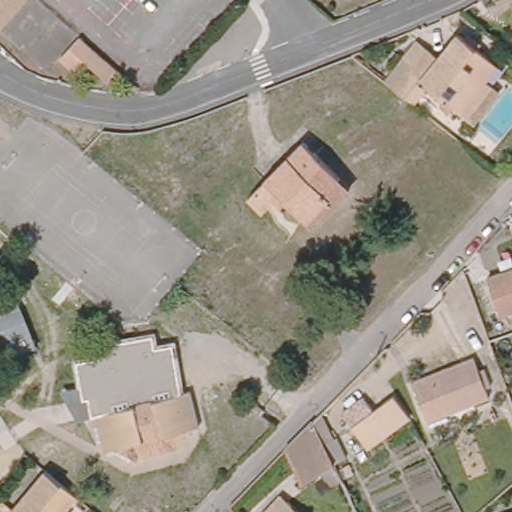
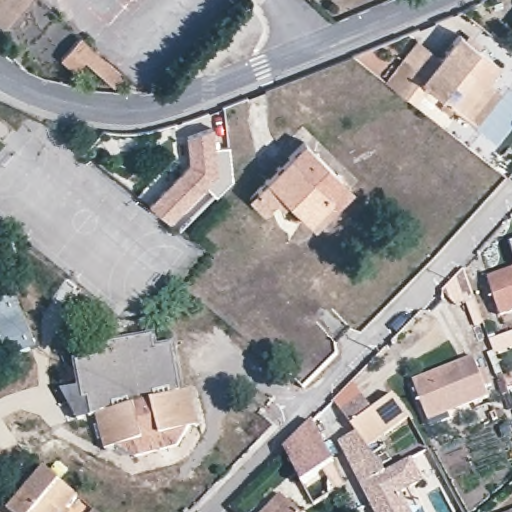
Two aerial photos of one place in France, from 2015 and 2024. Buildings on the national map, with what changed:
unchanged [(22,0),(0,27),(0,0),(22,0)]
unchanged [(107,66),(89,87),(57,60),(76,38),(107,66)]
unchanged [(461,119),(450,107),(421,81),(407,97),(384,77),(404,54),(414,63),(426,49),(436,58),(453,41),(485,68),(476,80),(486,91),(461,119)]
new [(187,162),(184,132),(209,130),(211,146),(228,144),(231,178),(215,194),(204,182),(166,220),(145,202),(187,162)]
unchanged [(315,227),(307,220),(279,191),(263,207),(249,194),(302,138),(342,175),(354,185),(315,227)]
unchanged [(483,271),(512,264),(512,302),(493,307),(483,271)]
unchanged [(14,301),(35,351),(8,363),(0,346),(0,307),(14,301)]
unchanged [(148,335),(171,345),(181,390),(192,388),(201,430),(187,435),(178,450),(133,463),(103,450),(94,418),(70,421),(59,392),(77,385),(72,358),(89,355),(88,347),(148,335)]
unchanged [(421,411),(410,382),(467,361),(481,400),(464,406),(425,421),(421,411)]
unchanged [(351,426),(343,414),(363,400),(371,411),(392,397),(408,419),(368,448),(357,434),(351,426)]
unchanged [(321,421),(338,456),(307,487),(289,452),(321,421)]
new [(412,457),(424,479),(415,484),(430,512),(379,512),(342,442),(357,434),(368,448),(386,472),(412,457)]
unchanged [(67,512),(11,512),(54,462),(86,490),(67,512)]
unchanged [(282,502),(292,512),(273,512),(282,502)]

